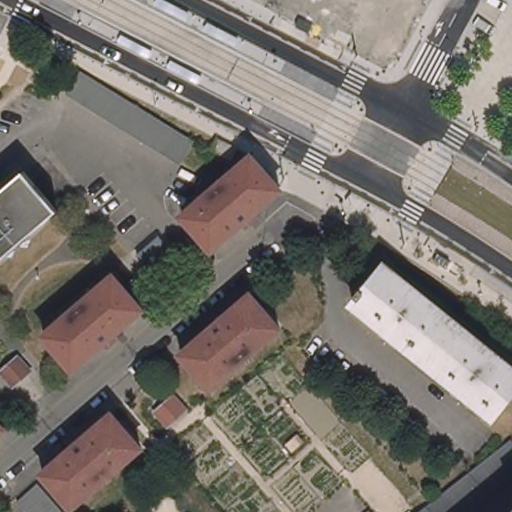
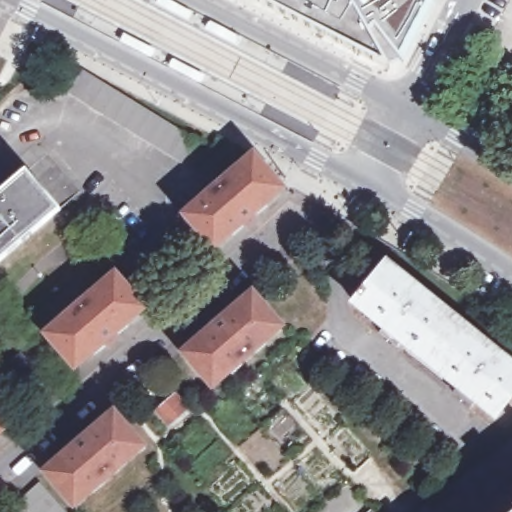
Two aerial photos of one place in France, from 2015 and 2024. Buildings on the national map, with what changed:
new [(436,2),(404,66),(397,62),(390,70),(376,62),(251,0),(434,0),(436,2)]
unchanged [(199,139),(186,163),(174,156),(70,97),(83,71),(196,137),(199,139)]
unchanged [(221,135),(241,145),(236,158),(215,147),(221,135)]
unchanged [(186,214),(257,154),(261,159),(286,188),(215,247),(186,214)]
unchanged [(23,170),(58,210),(0,259),(0,189),(23,170)]
unchanged [(160,274),(141,253),(163,234),(181,255),(160,274)]
unchanged [(459,386),(404,342),(399,348),(381,334),(386,327),(357,304),(361,299),(357,296),(363,289),(366,292),(388,266),(512,366),(512,394),(494,415),(478,401),(474,408),(454,392),(459,386)]
unchanged [(74,366),(47,334),(118,273),(146,306),(74,366)]
unchanged [(309,304),(294,287),(311,273),(326,290),(309,304)]
unchanged [(254,291),(284,326),(214,386),(185,351),(254,291)]
unchanged [(14,383),(3,371),(21,355),(33,368),(14,383)]
unchanged [(171,424),(158,407),(175,392),(189,408),(171,424)]
unchanged [(0,435),(0,410),(12,424),(0,435)]
unchanged [(146,446),(76,506),(46,471),(115,411),(146,446)]
unchanged [(425,512),(512,443),(512,482),(474,512),(425,512)]
unchanged [(422,512),(383,512),(407,492),(422,512)]

